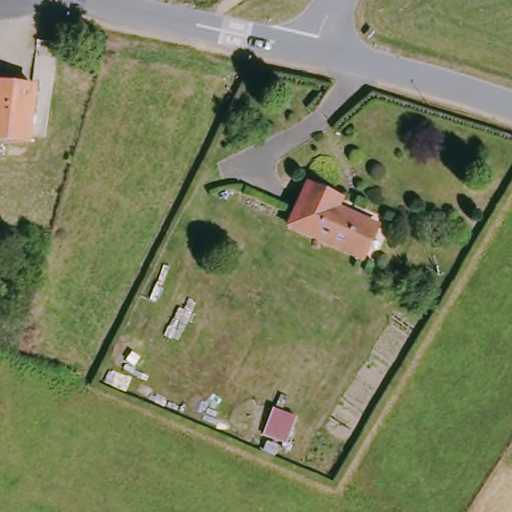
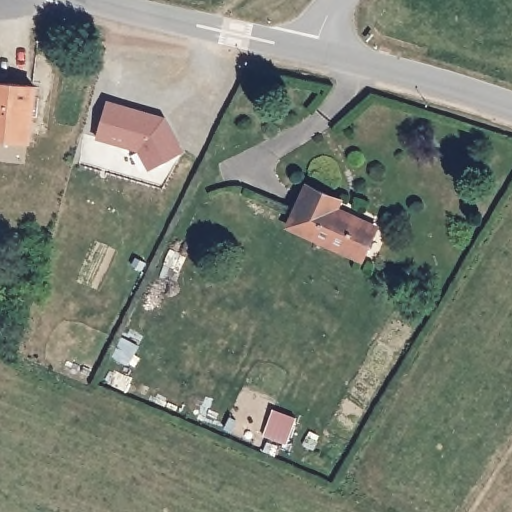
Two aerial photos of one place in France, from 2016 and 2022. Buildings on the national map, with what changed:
unchanged [(35,87),(28,142),(0,138),(0,82),(35,87)]
new [(98,139),(109,102),(166,118),(184,152),(151,170),(140,151),(98,139)]
unchanged [(341,202),(338,210),(379,230),(366,261),(291,227),(298,214),(309,189),(341,202)]
unchanged [(304,422),(290,449),(261,436),(272,407),(304,422)]

